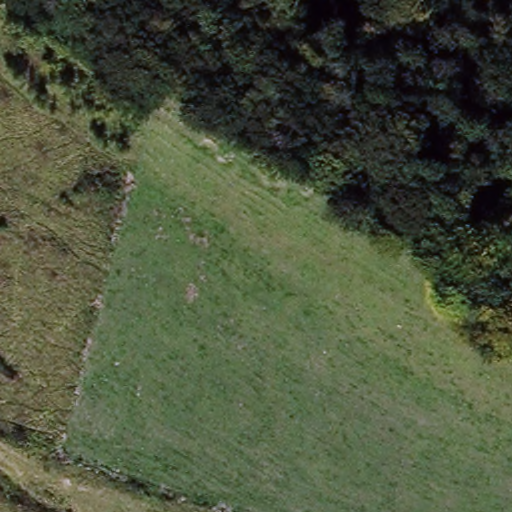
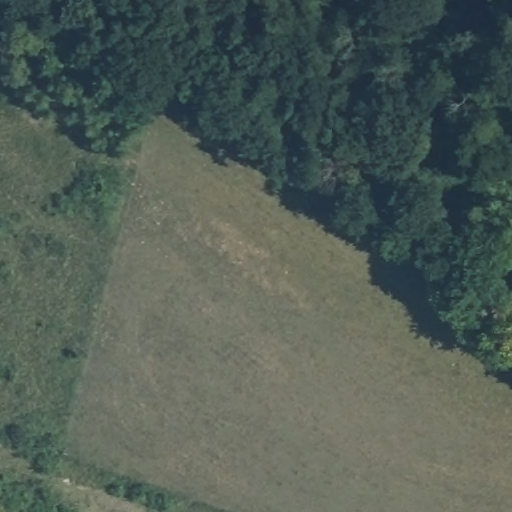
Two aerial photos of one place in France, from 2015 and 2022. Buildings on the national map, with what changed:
[]

